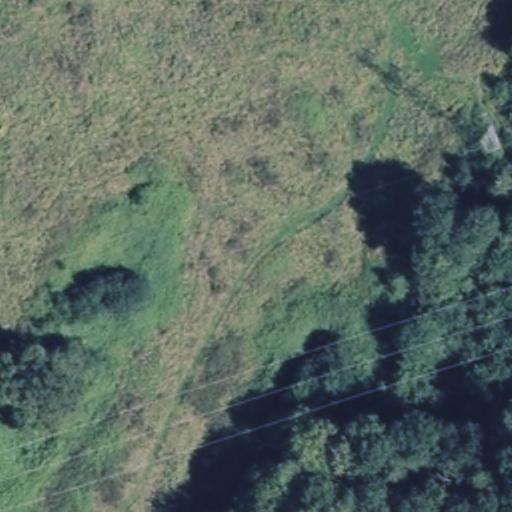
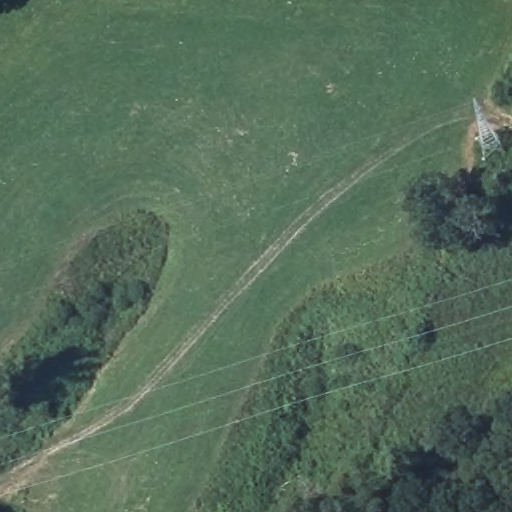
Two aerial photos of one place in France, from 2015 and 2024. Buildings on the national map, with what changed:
[]

